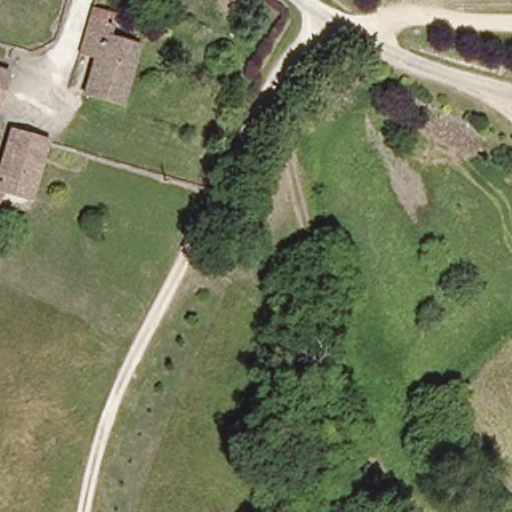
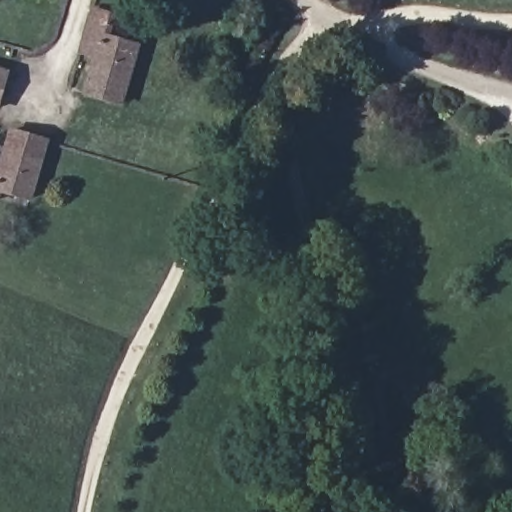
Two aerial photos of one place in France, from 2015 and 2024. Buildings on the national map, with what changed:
unchanged [(86,40),(96,6),(97,2),(119,9),(112,31),(142,41),(129,86),(100,76),(97,86),(73,78),(78,62),(92,67),(99,45),(86,40)]
unchanged [(0,66),(10,70),(0,103),(0,66)]
unchanged [(5,182),(1,196),(0,196),(0,157),(6,140),(11,125),(48,137),(30,192),(5,182)]

